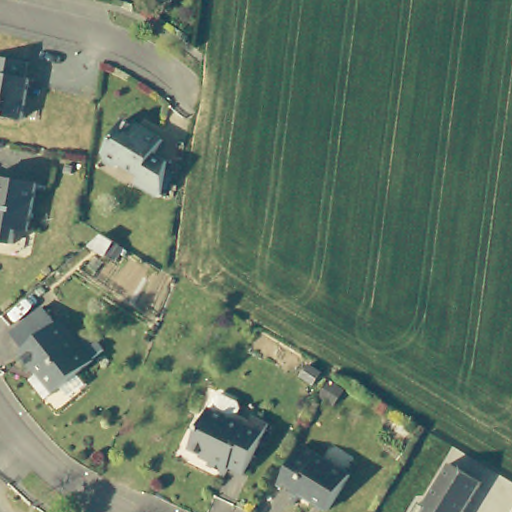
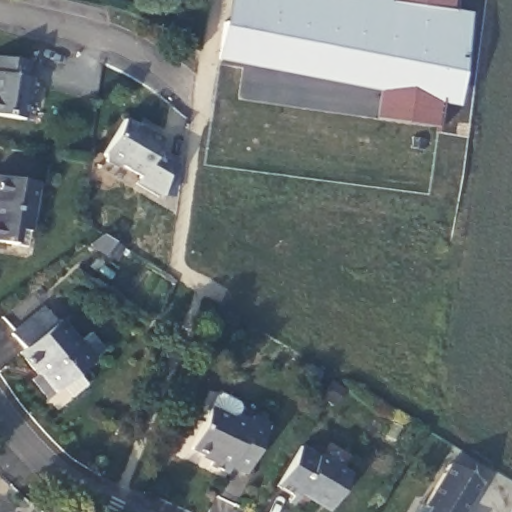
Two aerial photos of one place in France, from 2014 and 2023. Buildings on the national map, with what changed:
new [(450,14),(466,15),(455,95),(439,92),(377,84),(215,62),(221,25),(242,28),(246,0),(361,0),(385,3),(385,0),(451,0),(450,14)]
new [(242,28),(221,25),(225,0),(246,0),(242,28)]
new [(385,3),(361,0),(385,0),(385,3)]
unchanged [(26,75),(31,75),(25,116),(0,113),(0,55),(29,59),(26,75)]
new [(434,129),(371,121),(377,84),(439,92),(434,129)]
unchanged [(145,129),(146,126),(163,137),(155,151),(168,159),(163,192),(157,194),(136,181),(140,174),(122,163),(114,166),(105,160),(103,151),(123,116),(145,129)]
unchanged [(30,230),(19,228),(16,242),(0,240),(0,175),(38,180),(30,230)]
unchanged [(115,257),(110,255),(92,245),(105,234),(119,242),(123,245),(115,257)]
unchanged [(60,322),(64,320),(96,360),(51,396),(36,377),(42,373),(24,351),(28,348),(15,332),(47,307),(60,322)]
unchanged [(318,384),(307,376),(315,365),(326,372),(318,384)]
unchanged [(339,403),(326,395),(336,380),(348,388),(339,403)]
unchanged [(251,423),(266,430),(243,480),(228,473),(225,479),(208,470),(211,465),(189,453),(208,415),(213,402),(220,400),(237,409),(239,415),(235,422),(249,428),(251,423)]
unchanged [(354,475),(333,511),(301,492),(299,496),(282,486),(306,447),(354,475)]
unchanged [(464,512),(427,512),(422,509),(447,467),(479,487),(464,512)]

